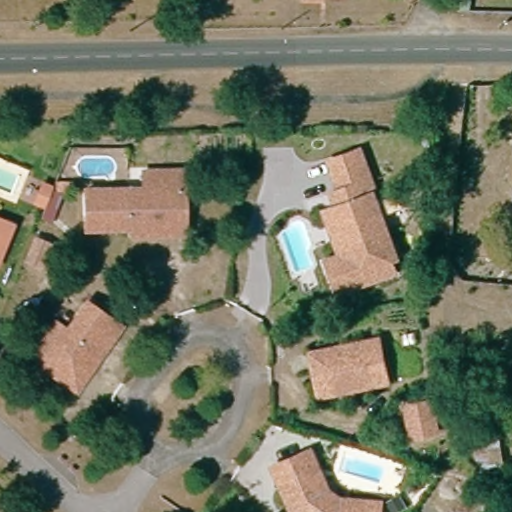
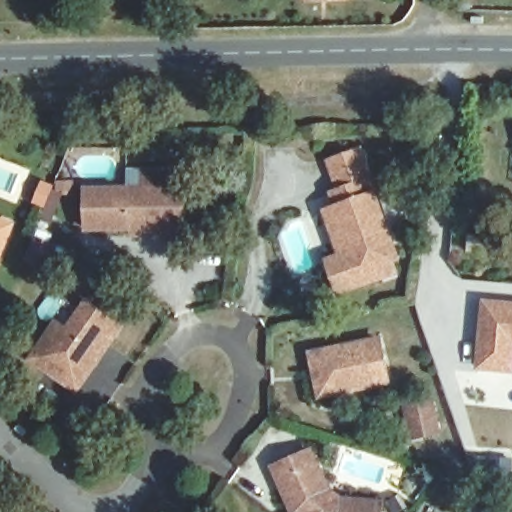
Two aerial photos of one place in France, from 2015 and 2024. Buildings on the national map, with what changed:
unchanged [(394,272),(336,293),(325,261),(338,256),(322,212),(330,209),(334,207),(330,194),(337,192),(326,162),(360,150),(375,192),(372,193),(388,236),(396,258),(390,261),(394,272)]
unchanged [(186,182),(170,182),(171,223),(135,224),(89,225),(88,184),(147,183),(147,166),(186,165),(186,182)]
unchanged [(49,200),(39,196),(45,180),(55,185),(49,200)]
unchanged [(187,230),(135,231),(135,224),(171,223),(170,182),(186,182),(187,230)]
unchanged [(0,248),(0,221),(10,225),(0,248)]
unchanged [(45,262),(29,256),(38,232),(54,239),(45,262)]
unchanged [(34,353),(47,335),(59,318),(69,326),(89,297),(124,322),(80,386),(34,353)]
new [(482,297),(512,300),(512,373),(475,368),(482,297)]
unchanged [(314,376),(309,355),(376,340),(385,382),(333,394),(318,397),(314,376)]
unchanged [(413,423),(409,402),(434,397),(441,428),(425,432),(415,433),(413,423)]
unchanged [(288,504),(275,472),(306,447),(309,446),(326,486),(338,495),(379,498),(378,512),(292,512),(288,504)]

